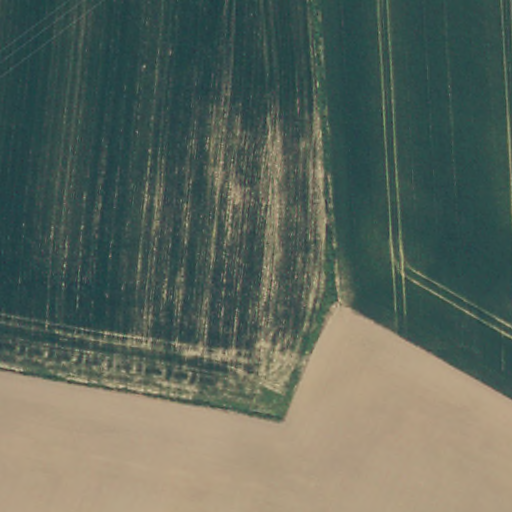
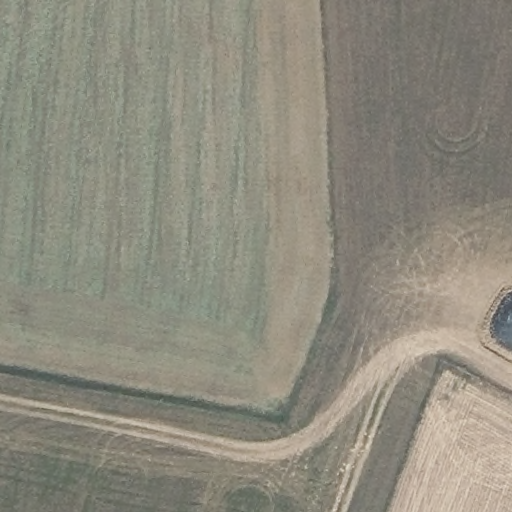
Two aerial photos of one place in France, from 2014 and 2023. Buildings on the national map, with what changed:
[]

